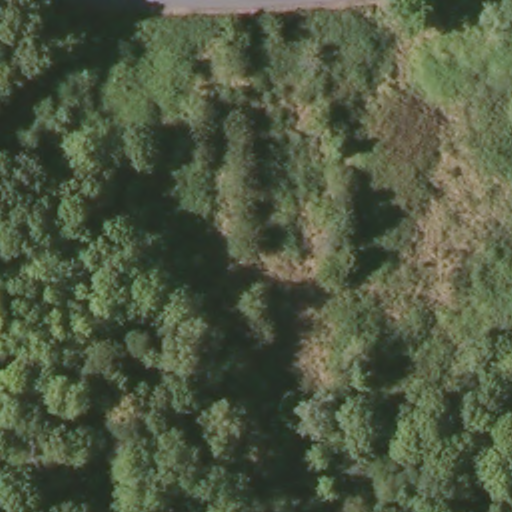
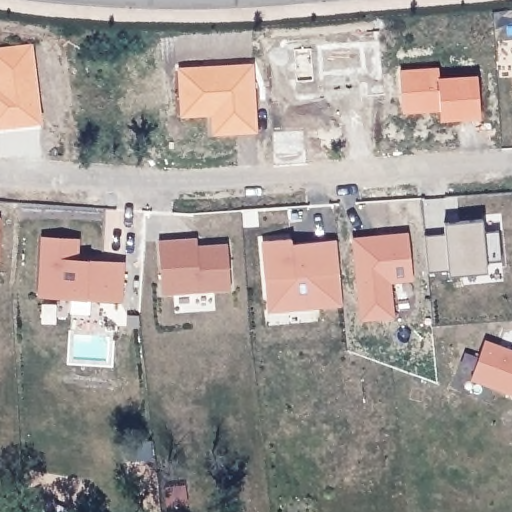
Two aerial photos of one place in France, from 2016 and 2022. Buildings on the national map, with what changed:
new [(0,132),(0,48),(35,45),(45,127),(0,132)]
new [(260,136),(212,136),(212,119),(180,120),(177,68),(255,65),(260,136)]
new [(442,125),(441,112),(403,113),(400,70),(440,69),(441,79),(480,76),(482,124),(442,125)]
new [(444,229),(443,223),(458,221),(482,219),(483,231),(498,230),(502,261),(487,262),(487,267),(427,273),(424,235),(445,234),(444,229)]
new [(410,234),(412,281),(392,280),(397,325),(357,328),(353,239),(410,234)]
new [(42,237),(80,240),(78,258),(124,263),(122,302),(38,298),(42,237)]
new [(268,312),(262,241),(292,239),(292,242),(335,240),(342,306),(268,312)]
new [(198,240),(199,248),(177,250),(177,242),(198,240)]
new [(228,245),(232,289),(165,295),(160,244),(177,242),(177,250),(228,245)]
new [(485,342),(512,352),(512,395),(471,380),(485,342)]

